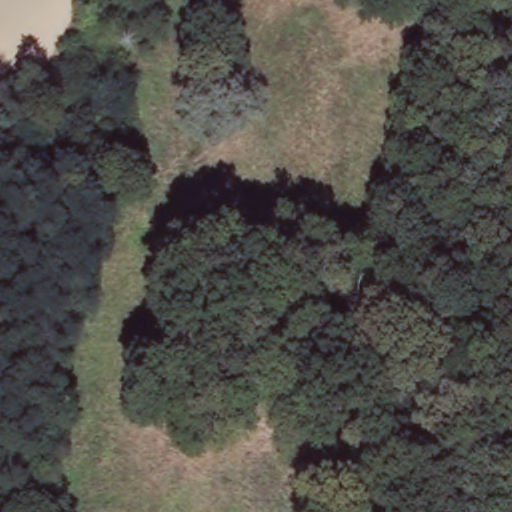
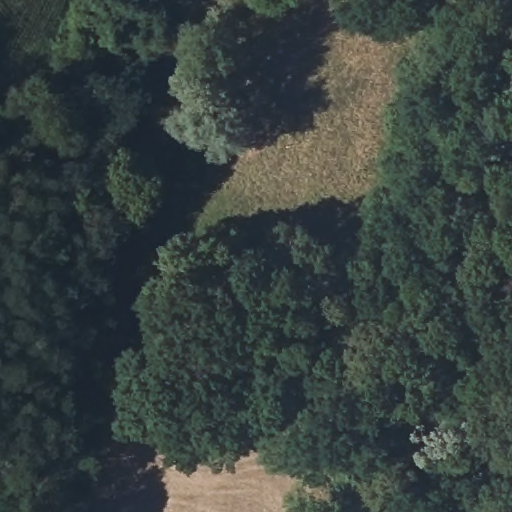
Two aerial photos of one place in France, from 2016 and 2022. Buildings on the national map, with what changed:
[]

